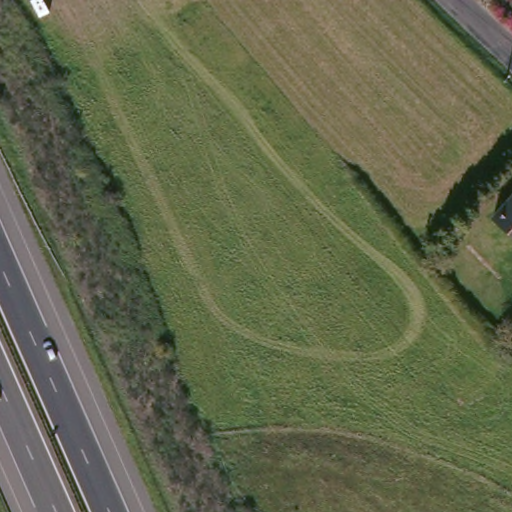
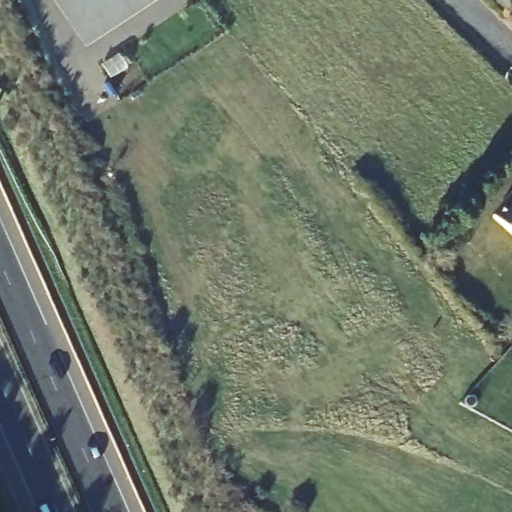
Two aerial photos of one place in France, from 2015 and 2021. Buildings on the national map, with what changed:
unchanged [(512,210),(512,222),(506,216),(512,210)]

